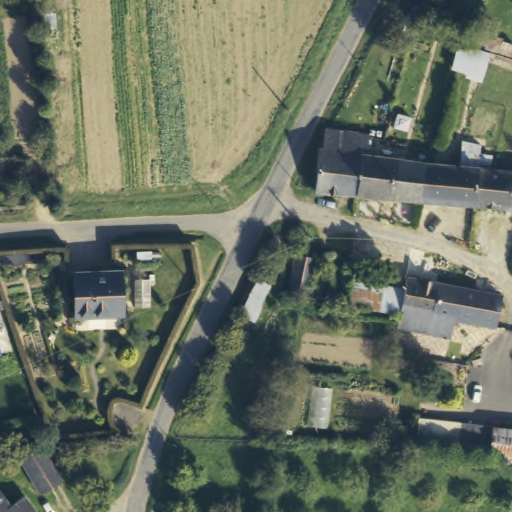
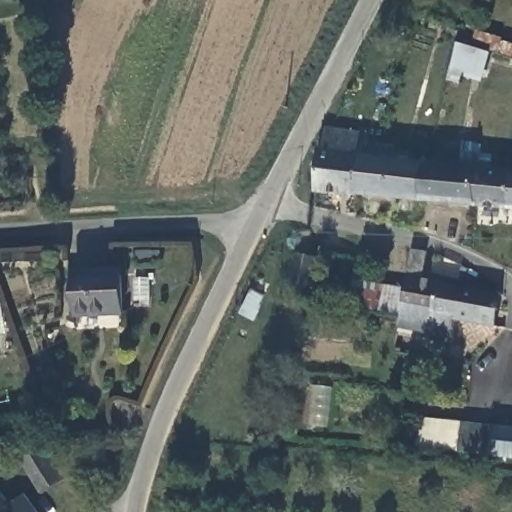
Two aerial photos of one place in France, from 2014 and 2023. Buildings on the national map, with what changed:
unchanged [(455,40),(474,46),(469,70),(450,65),(455,40)]
unchanged [(324,146),(324,134),(327,129),(367,135),(367,150),(367,157),(360,156),(356,194),(315,190),(318,146),(324,146)]
unchanged [(375,150),(375,159),(425,162),(418,200),(356,194),(360,156),(367,157),(367,150),(375,150)]
unchanged [(476,166),(473,201),(472,205),(418,200),(425,162),(429,162),(476,166)]
unchanged [(507,209),(472,205),(473,201),(476,166),(512,170),(512,208),(508,207),(507,209)]
unchanged [(307,234),(307,241),(305,246),(299,248),(293,247),(291,245),(290,242),(288,238),(292,232),(297,229),(305,230),(307,234)]
unchanged [(308,286),(290,283),(293,255),(312,258),(308,286)]
unchanged [(120,270),(121,310),(76,313),(74,271),(120,270)]
unchanged [(437,278),(432,309),(401,303),(403,286),(406,271),(437,278)]
unchanged [(350,300),(354,277),(403,286),(401,303),(400,307),(350,300)]
unchanged [(496,321),(455,313),(451,332),(398,322),(400,307),(401,303),(432,309),(437,278),(501,292),(496,321)]
unchanged [(462,420),(457,449),(415,443),(419,415),(462,420)]
unchanged [(512,457),(457,449),(462,420),(512,427),(512,457)]
unchanged [(61,478),(41,491),(20,457),(40,445),(61,478)]
unchanged [(9,505),(23,496),(35,512),(0,512),(0,491),(9,505)]

